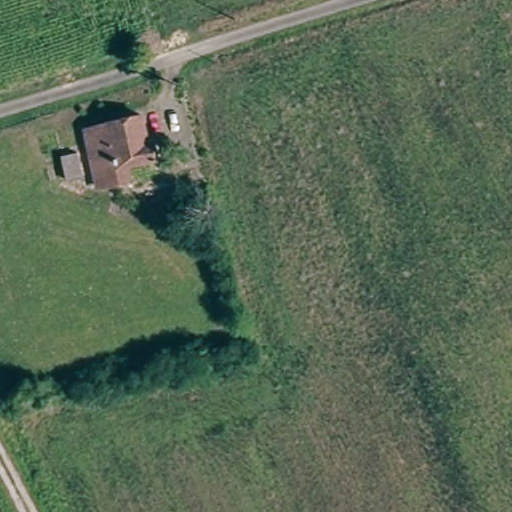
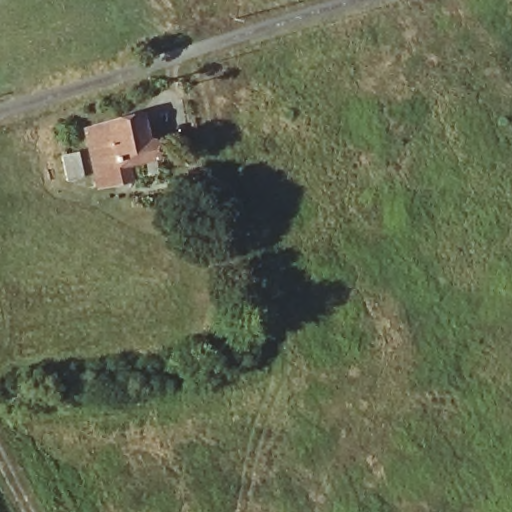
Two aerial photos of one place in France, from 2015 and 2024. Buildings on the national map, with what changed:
unchanged [(106,120),(138,113),(144,139),(149,138),(153,157),(129,162),(132,177),(96,185),(84,129),(107,124),(106,120)]
unchanged [(87,187),(68,191),(63,164),(82,160),(87,187)]

